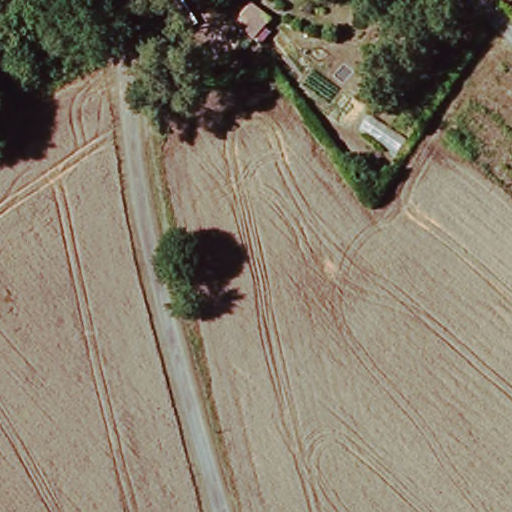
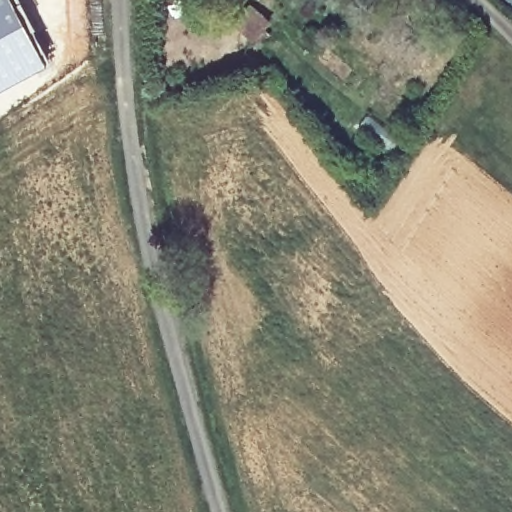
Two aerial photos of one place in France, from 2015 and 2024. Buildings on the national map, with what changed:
new [(17,0),(50,61),(0,87),(0,0),(17,0)]

